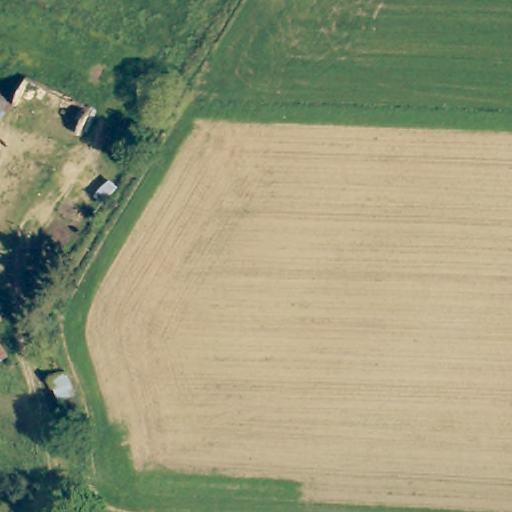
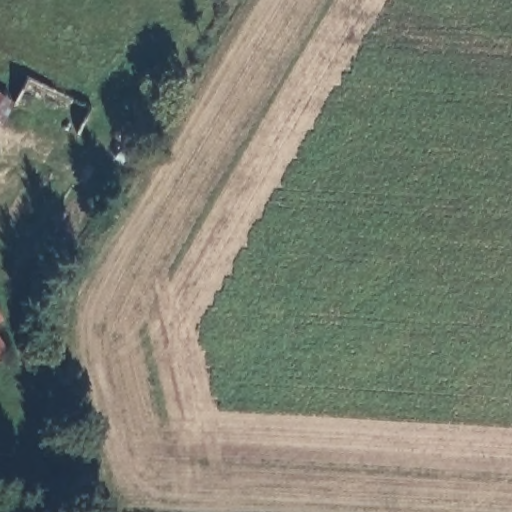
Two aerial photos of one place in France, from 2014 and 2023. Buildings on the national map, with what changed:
unchanged [(0,125),(0,87),(18,99),(0,125)]
unchanged [(8,316),(0,322),(0,304),(8,316)]
unchanged [(14,352),(0,361),(0,331),(14,352)]

